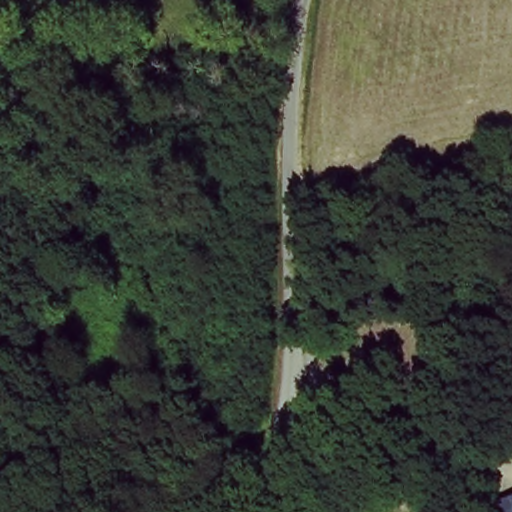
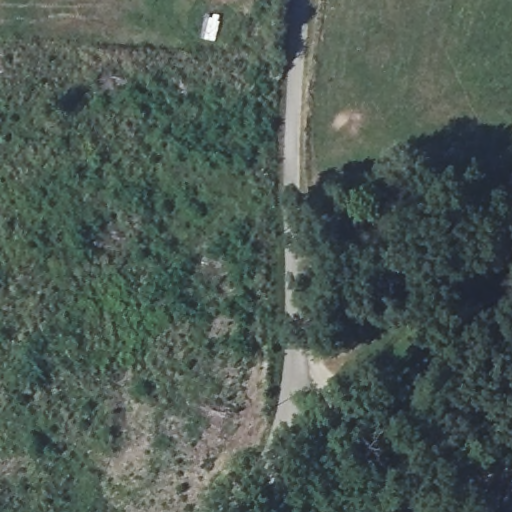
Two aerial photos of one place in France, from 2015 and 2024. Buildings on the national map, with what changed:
unchanged [(512,499),(512,512),(487,512),(485,506),(512,499)]

